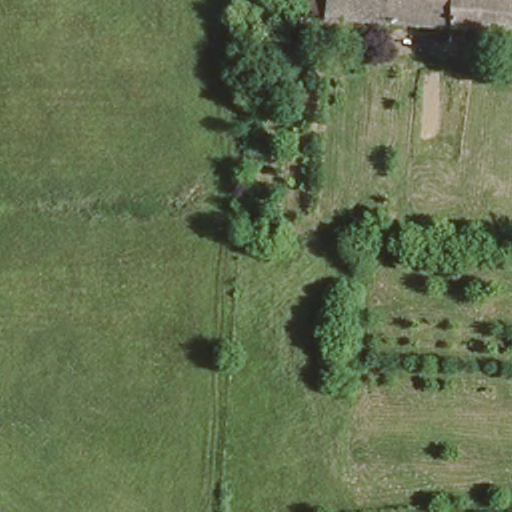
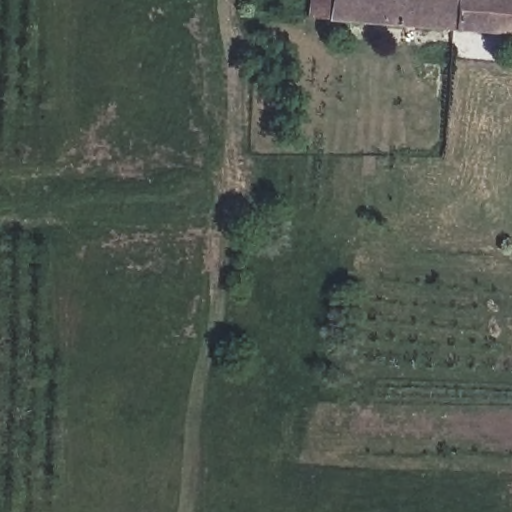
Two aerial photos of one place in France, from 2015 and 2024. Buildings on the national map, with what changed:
unchanged [(310,14),(311,0),(336,0),(335,16),(310,14)]
unchanged [(336,0),(512,0),(512,32),(335,16),(336,0)]

